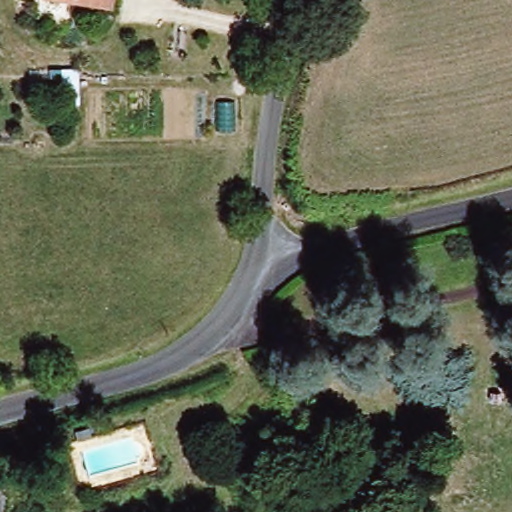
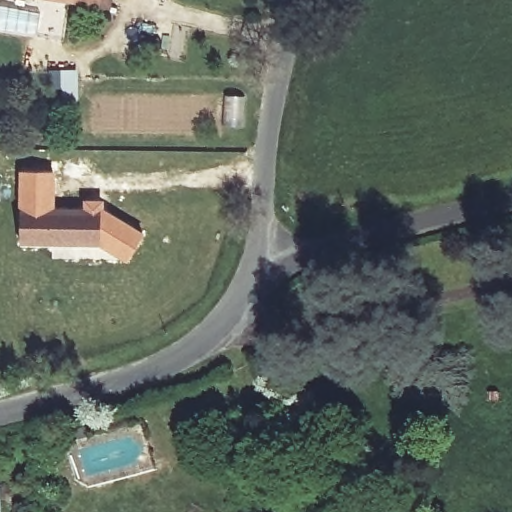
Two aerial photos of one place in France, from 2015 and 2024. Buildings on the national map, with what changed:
unchanged [(55,0),(109,0),(107,8),(55,0)]
new [(77,68),(78,101),(54,100),(54,97),(47,97),(46,70),(77,68)]
new [(53,170),(55,207),(81,207),(82,197),(103,199),(103,207),(143,232),(125,262),(100,246),(18,243),(17,170),(53,170)]

